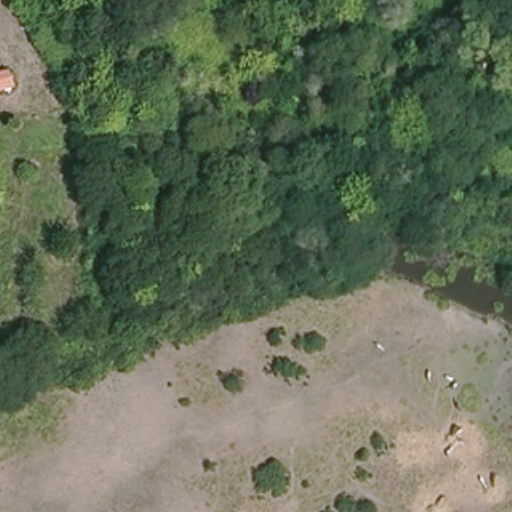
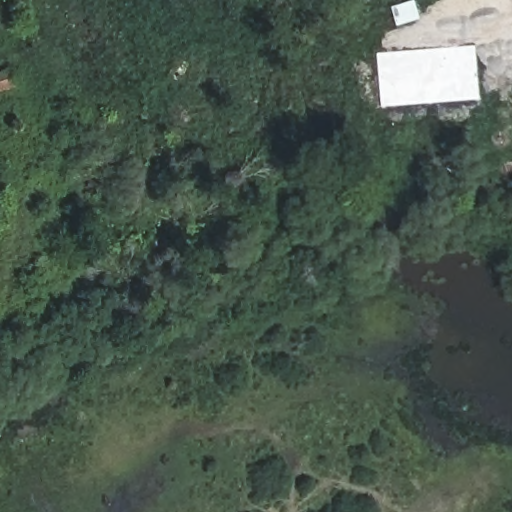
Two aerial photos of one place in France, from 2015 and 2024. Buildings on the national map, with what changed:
new [(478,99),(380,107),(376,53),(474,45),(478,99)]

